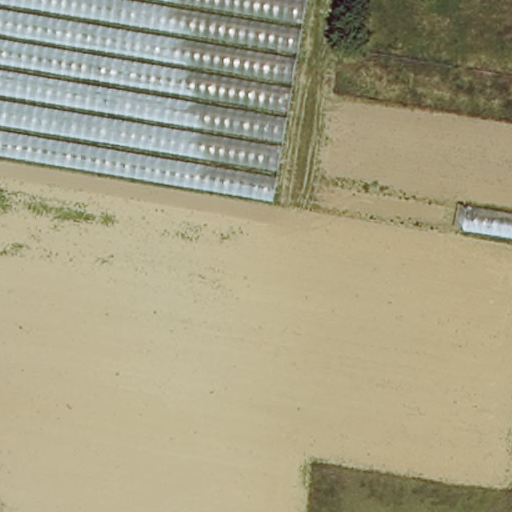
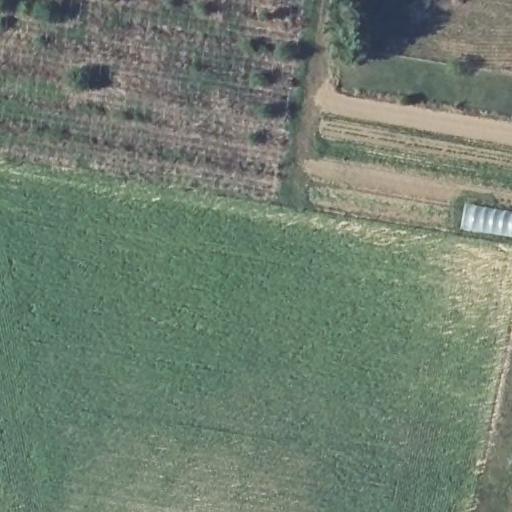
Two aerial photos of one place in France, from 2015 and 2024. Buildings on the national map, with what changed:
demolished [(275,208),(0,163),(0,0),(310,0),(275,208)]

